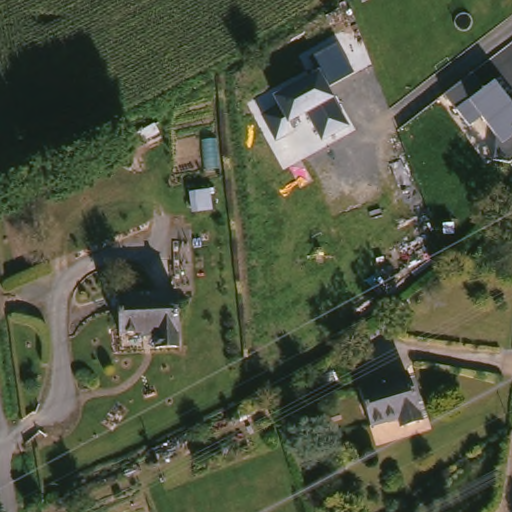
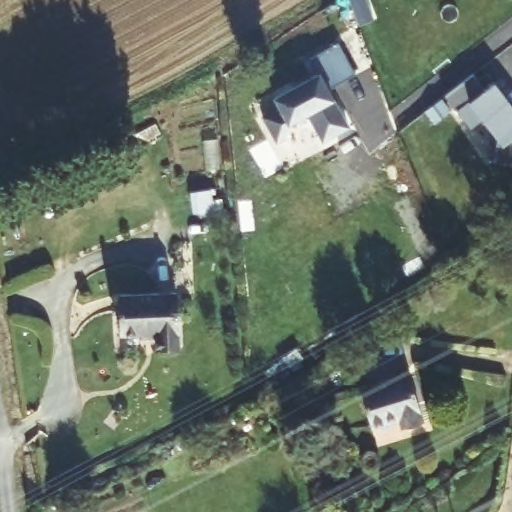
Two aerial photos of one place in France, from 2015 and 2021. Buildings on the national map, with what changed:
unchanged [(280,109),(276,99),(319,76),(310,60),(337,45),(353,76),(325,90),(346,128),(323,142),(309,115),(289,124),(288,136),(280,142),(262,117),(280,109)]
unchanged [(481,89),(495,81),(512,103),(512,161),(496,158),(500,143),(483,118),(468,126),(445,94),(471,73),(481,89)]
unchanged [(180,344),(127,348),(124,293),(177,290),(180,344)]
unchanged [(424,426),(404,431),(400,422),(377,427),(367,385),(408,375),(424,426)]

